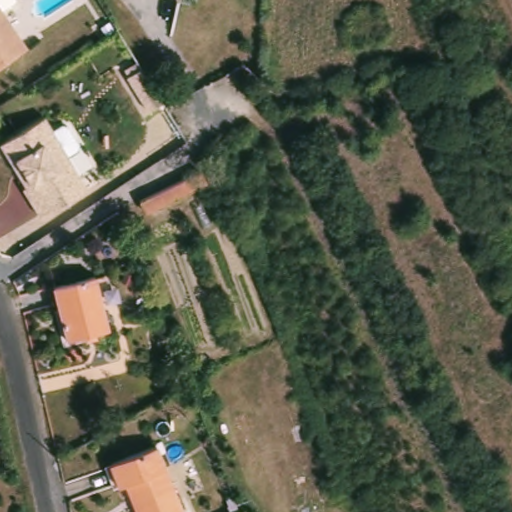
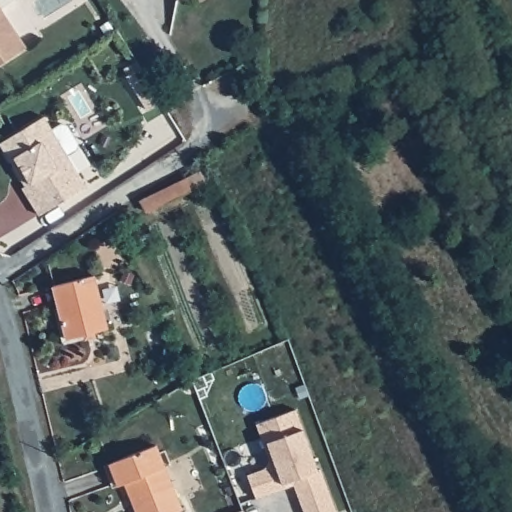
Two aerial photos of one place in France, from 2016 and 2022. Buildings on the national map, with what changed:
unchanged [(2,7),(28,46),(0,65),(0,0),(14,0),(2,7)]
unchanged [(152,118),(125,75),(139,66),(166,109),(152,118)]
unchanged [(0,142),(42,114),(50,126),(59,120),(65,121),(77,140),(76,145),(66,151),(87,183),(41,213),(23,186),(26,184),(12,162),(0,144),(0,142)]
unchanged [(148,217),(144,207),(204,179),(209,189),(148,217)]
unchanged [(90,279),(104,330),(63,341),(50,289),(90,279)]
new [(318,470),(321,469),(336,512),(304,512),(295,486),(256,498),(247,475),(265,468),(269,458),(257,423),(296,410),(303,429),(318,470)]
unchanged [(183,512),(137,512),(126,486),(120,489),(112,466),(158,448),(183,512)]

